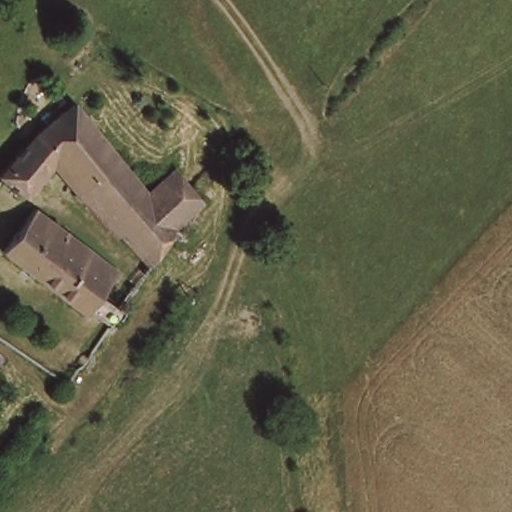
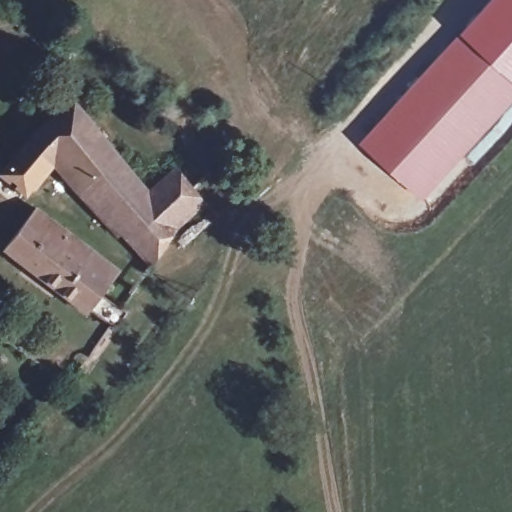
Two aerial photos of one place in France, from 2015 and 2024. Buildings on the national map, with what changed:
new [(465,159),(424,203),(357,142),(449,43),(490,0),(512,0),(512,122),(472,165),(465,159)]
unchanged [(176,170),(205,205),(175,231),(153,266),(57,161),(53,158),(25,194),(3,177),(25,150),(33,141),(74,106),(116,156),(147,195),(176,170)]
unchanged [(107,279),(112,283),(87,315),(3,251),(36,210),(87,248),(115,269),(107,279)]

